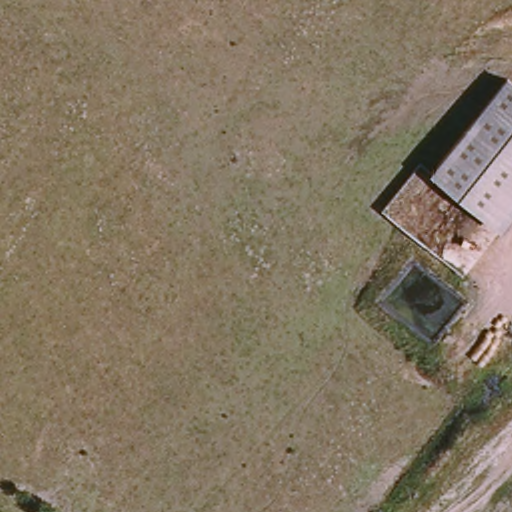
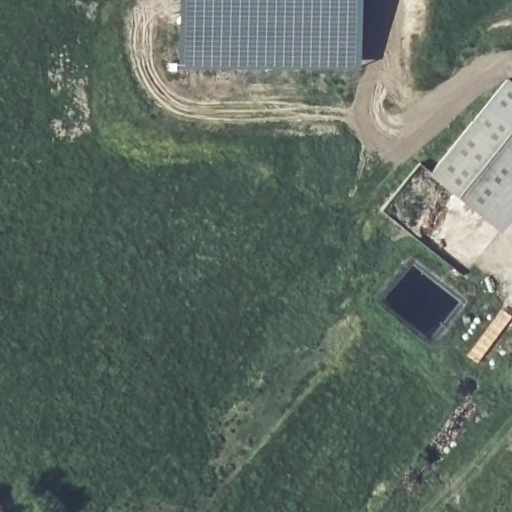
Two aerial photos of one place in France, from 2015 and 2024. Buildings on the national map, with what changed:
new [(360,0),(359,69),(178,67),(177,0),(360,0)]
unchanged [(512,92),(512,200),(493,222),(440,179),(512,92)]

